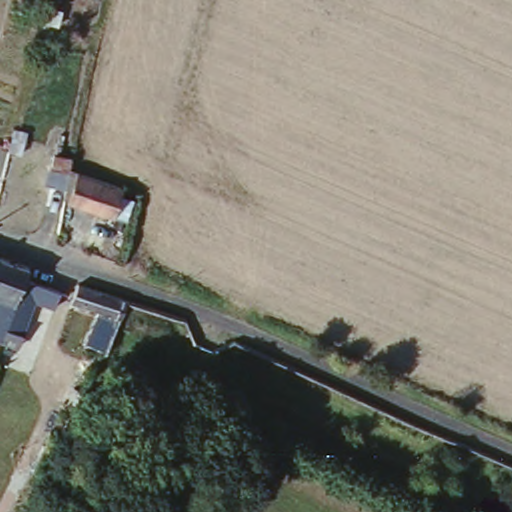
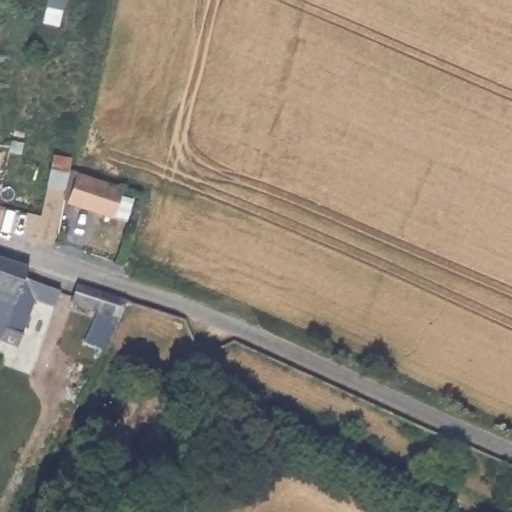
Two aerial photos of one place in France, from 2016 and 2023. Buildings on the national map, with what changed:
unchanged [(124,187),(115,216),(69,202),(75,172),(124,187)]
unchanged [(22,294),(16,308),(0,301),(0,289),(2,283),(0,283),(0,244),(40,256),(34,267),(51,275),(40,301),(22,294)]
unchanged [(131,296),(116,321),(106,340),(91,332),(106,307),(67,296),(70,290),(75,276),(131,296)]

